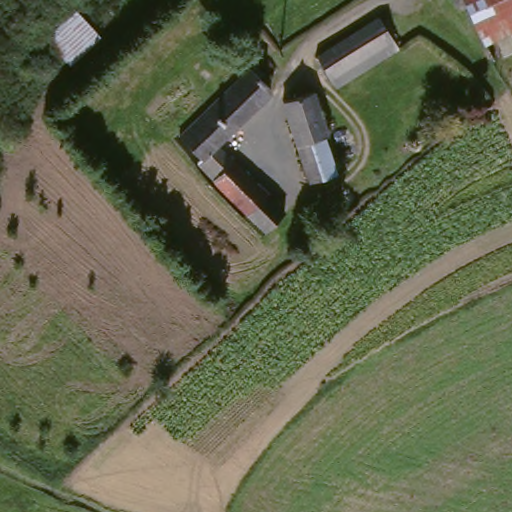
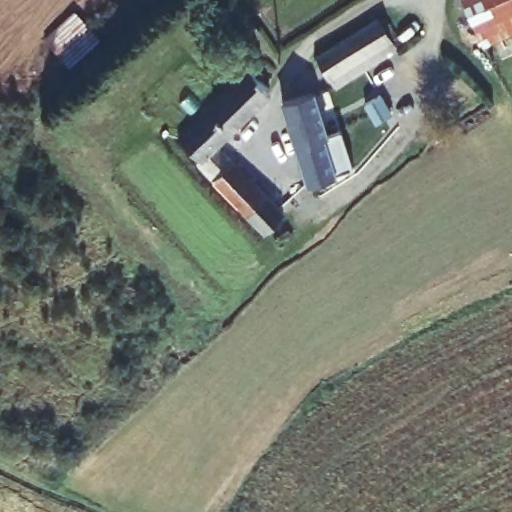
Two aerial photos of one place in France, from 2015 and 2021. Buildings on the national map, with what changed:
unchanged [(473,0),(512,0),(512,13),(484,26),(473,0)]
unchanged [(109,45),(78,72),(50,42),(82,13),(109,45)]
unchanged [(512,13),(512,37),(492,46),(492,43),(484,26),(512,13)]
unchanged [(393,50),(337,86),(322,64),(378,27),(393,50)]
unchanged [(189,133),(258,67),(280,95),(226,142),(273,201),(247,220),(217,181),(223,173),(189,133)]
unchanged [(321,91),(337,138),(333,140),(345,174),(319,183),(291,101),(321,91)]

